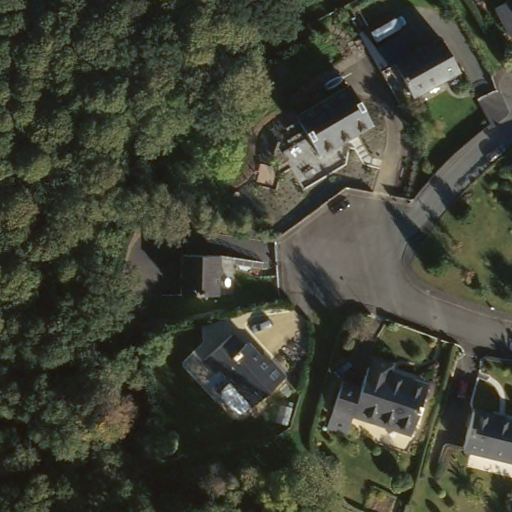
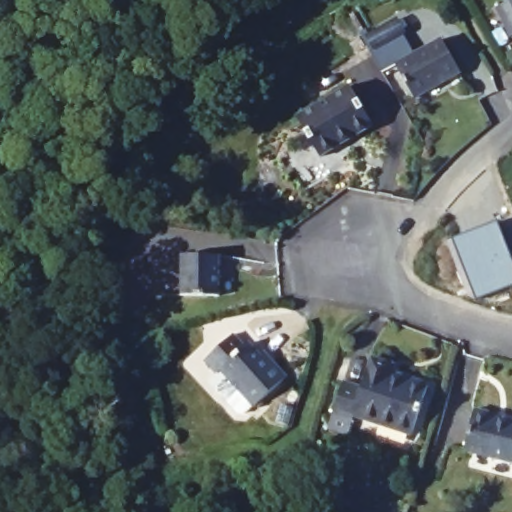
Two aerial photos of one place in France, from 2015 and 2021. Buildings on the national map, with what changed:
unchanged [(512,0),(512,20),(502,0),(512,0)]
unchanged [(447,35),(465,69),(415,96),(397,62),(447,35)]
unchanged [(351,81),(374,122),(326,152),(303,111),(351,81)]
new [(450,241),(498,222),(512,259),(512,291),(492,299),(475,305),(451,242),(450,241)]
unchanged [(226,252),(226,292),(190,292),(189,253),(226,252)]
unchanged [(231,366),(223,373),(211,357),(243,331),(252,341),(257,336),(269,352),(273,350),(294,375),(262,403),(231,366)]
unchanged [(358,421),(353,435),(337,430),(342,416),(352,381),(369,387),(375,365),(369,363),(371,355),(398,362),(397,372),(430,383),(415,434),(367,417),(358,421)]
unchanged [(481,407),(512,416),(512,457),(470,445),(481,407)]

